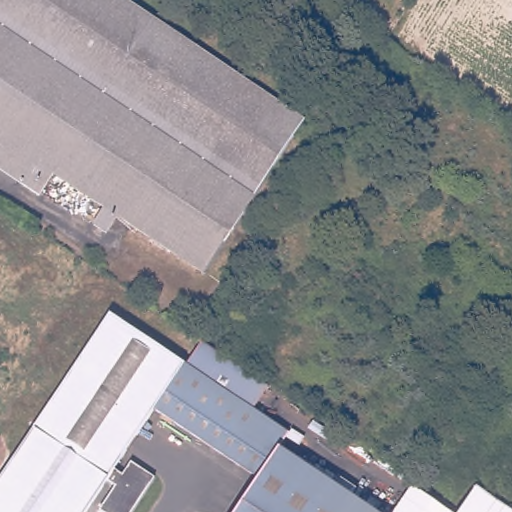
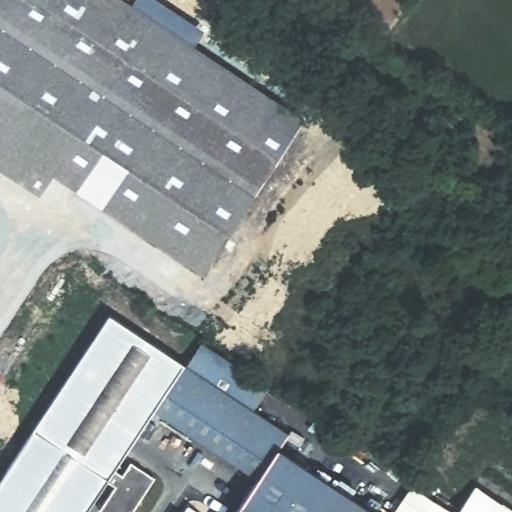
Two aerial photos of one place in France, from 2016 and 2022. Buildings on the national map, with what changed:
unchanged [(305,117),(201,272),(55,174),(41,194),(0,167),(0,0),(129,0),(305,117)]
unchanged [(114,467),(124,473),(131,462),(155,477),(131,512),(105,512),(100,508),(115,486),(106,481),(85,512),(0,512),(0,475),(104,313),(187,368),(237,400),(209,443),(154,407),(114,467)]
unchanged [(205,340),(270,382),(252,411),(237,400),(187,368),(205,340)]
unchanged [(287,432),(278,447),(376,512),(237,512),(260,477),(209,443),(237,400),(252,411),(287,432)]
unchanged [(451,512),(394,512),(410,487),(451,512)]
unchanged [(512,512),(456,512),(475,487),(512,512)]

